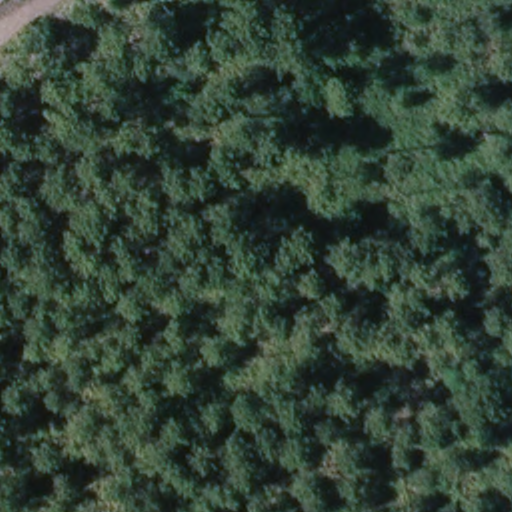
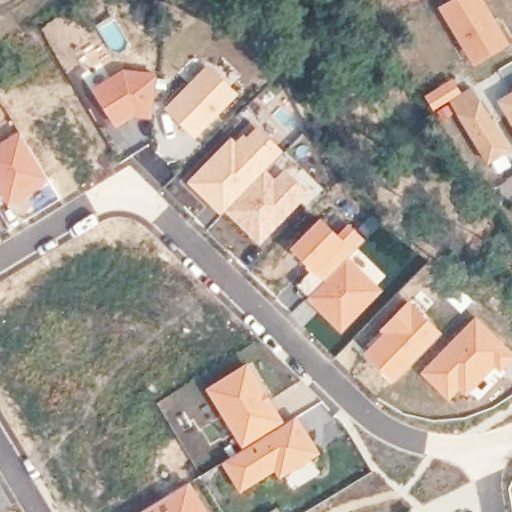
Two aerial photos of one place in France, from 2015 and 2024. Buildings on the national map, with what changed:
new [(486,0),(512,43),(512,44),(473,66),(440,6),(450,0),(486,0)]
new [(207,63),(239,94),(194,138),(164,108),(207,63)]
new [(123,68),(158,72),(151,119),(133,117),(115,127),(91,88),(123,68)]
new [(512,151),(490,165),(447,100),(472,85),(512,150),(512,151)]
new [(512,92),(512,122),(498,100),(512,92)]
new [(231,135),(237,140),(257,123),(284,151),(267,168),(223,211),(220,214),(186,181),(231,135)]
new [(19,131),(49,180),(8,206),(0,192),(0,142),(19,131)]
new [(267,168),(275,176),(284,167),(311,191),(258,245),(223,211),(267,168)]
new [(321,215),(337,233),(348,222),(366,239),(355,250),(351,255),(322,280),(310,268),(290,246),(321,215)]
new [(305,297),(294,286),(310,268),(322,280),(351,255),(384,289),(341,333),(318,311),(303,326),(290,312),(305,297)]
new [(291,283),(297,288),(286,300),(289,304),(286,307),(277,297),(291,283)]
new [(380,333),(377,330),(410,297),(441,331),(392,381),(362,351),(380,333)]
new [(512,350),(512,360),(499,373),(496,370),(467,397),(459,390),(448,400),(420,371),(476,315),(512,350)]
new [(249,361),(286,420),(242,448),(205,387),(249,361)]
new [(242,448),(286,420),(297,415),(321,451),(279,480),(273,471),(240,493),(221,462),(242,448)]
new [(190,481),(208,512),(139,512),(190,481)]

